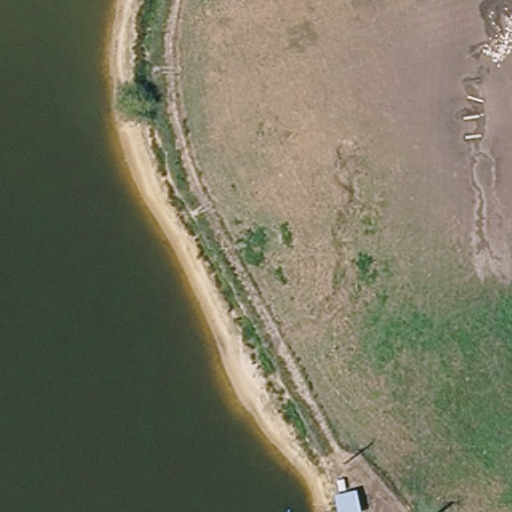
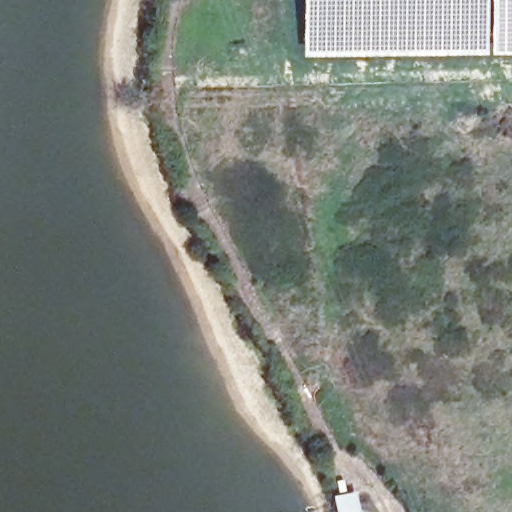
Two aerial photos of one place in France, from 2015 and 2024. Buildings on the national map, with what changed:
new [(512,54),(303,56),(302,0),(512,0),(512,54)]
demolished [(367,507),(351,511),(346,491),(363,487),(367,507)]
new [(356,491),(361,512),(338,512),(334,495),(356,491)]

